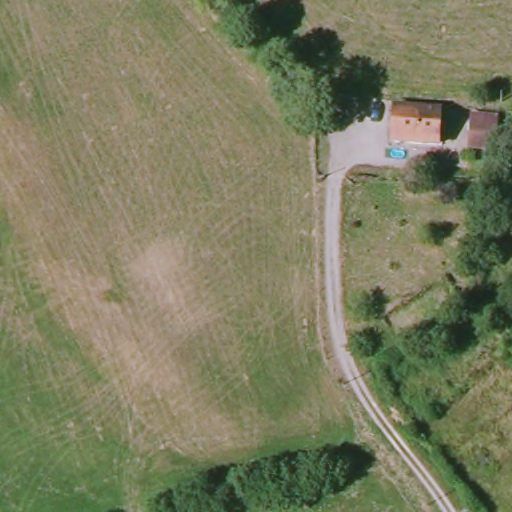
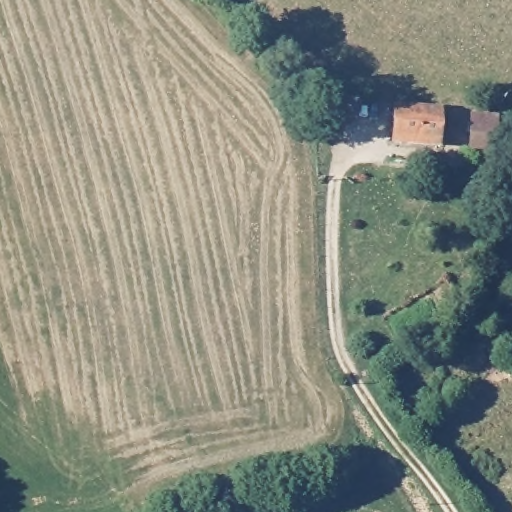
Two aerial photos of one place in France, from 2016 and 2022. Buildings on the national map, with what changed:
unchanged [(332,95),(359,96),(357,111),(332,110),(332,95)]
unchanged [(398,107),(445,110),(440,144),(395,141),(398,107)]
unchanged [(470,119),(493,120),(491,147),(468,145),(470,119)]

